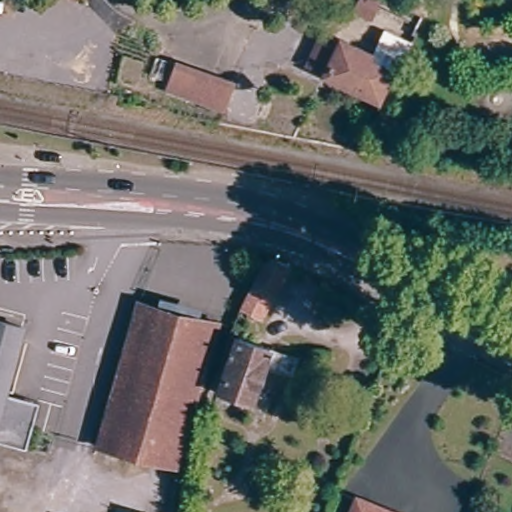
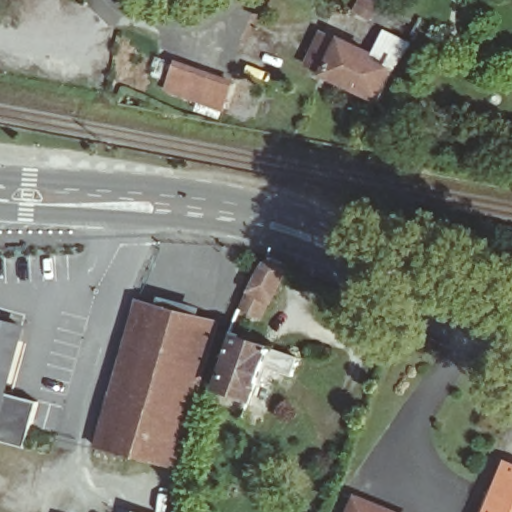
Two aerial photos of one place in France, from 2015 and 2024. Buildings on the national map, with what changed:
unchanged [(383,98),(328,72),(311,65),(327,29),(344,36),(376,51),(374,55),(397,65),(383,98)]
unchanged [(224,78),(217,103),(178,92),(185,67),(224,78)]
unchanged [(277,305),(275,304),(267,322),(247,313),(263,276),(269,257),(294,269),(277,305)]
unchanged [(98,447),(141,302),(218,322),(177,468),(98,447)]
unchanged [(1,393),(37,402),(26,448),(0,442),(0,323),(17,327),(1,393)]
unchanged [(298,379),(270,369),(258,403),(225,391),(237,356),(229,354),(236,337),(304,361),(298,379)]
new [(512,462),(512,512),(485,512),(504,459),(512,462)]
unchanged [(376,512),(354,512),(357,504),(376,512)]

